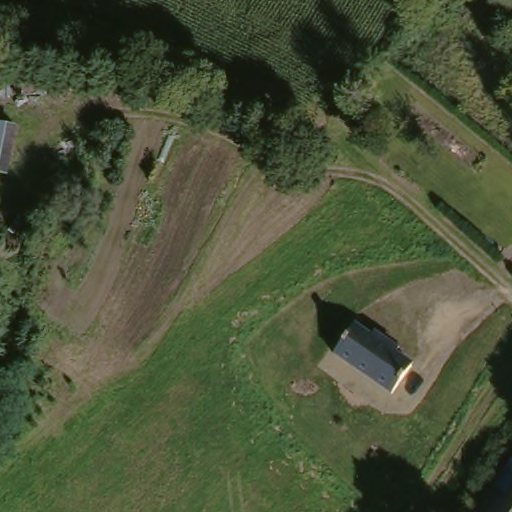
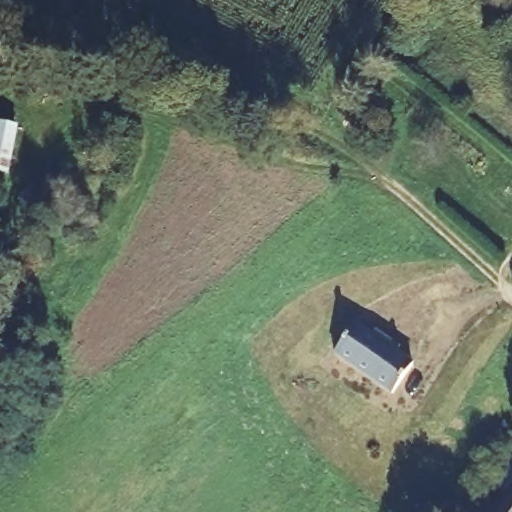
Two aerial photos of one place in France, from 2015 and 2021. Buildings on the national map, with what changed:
unchanged [(13,175),(0,170),(0,118),(28,127),(13,175)]
unchanged [(356,325),(371,333),(377,330),(401,347),(398,351),(413,365),(390,395),(332,354),(356,325)]
unchanged [(494,482),(512,462),(512,496),(494,482)]
unchanged [(512,496),(512,512),(470,512),(494,482),(512,496)]

